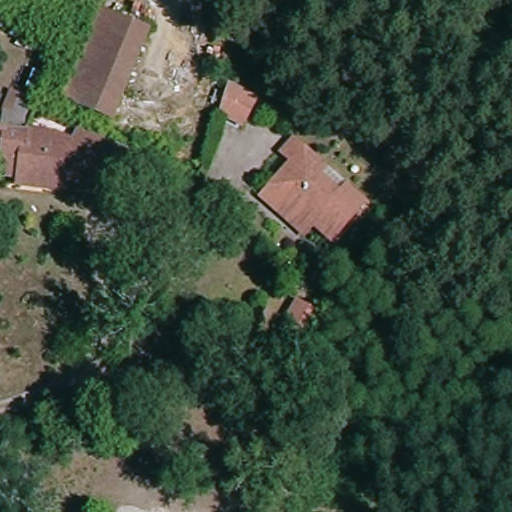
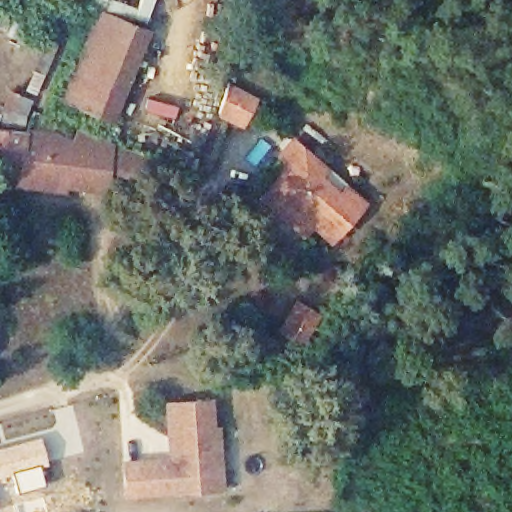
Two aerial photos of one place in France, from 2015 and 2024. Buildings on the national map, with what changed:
unchanged [(96,9),(150,31),(112,123),(58,102),(96,9)]
unchanged [(23,129),(0,125),(0,111),(9,93),(14,94),(19,80),(29,83),(33,73),(45,78),(29,114),(23,129)]
unchanged [(256,96),(240,124),(217,111),(227,81),(256,96)]
unchanged [(0,153),(0,129),(21,133),(22,135),(50,139),(68,144),(106,158),(106,166),(107,190),(48,184),(47,189),(19,185),(20,174),(9,172),(10,165),(0,153)]
unchanged [(153,182),(106,166),(106,158),(68,144),(73,130),(161,162),(153,182)]
unchanged [(261,195),(269,186),(291,161),(282,154),(292,141),(323,169),(326,165),(348,184),(345,189),(364,205),(331,241),(312,224),(304,234),(261,195)]
unchanged [(320,318),(305,343),(281,329),(297,303),(320,318)]
new [(213,399),(215,425),(219,424),(225,489),(124,498),(118,460),(166,455),(163,401),(213,399)]
new [(47,461),(39,464),(44,482),(17,491),(10,472),(0,475),(0,446),(40,436),(47,461)]

